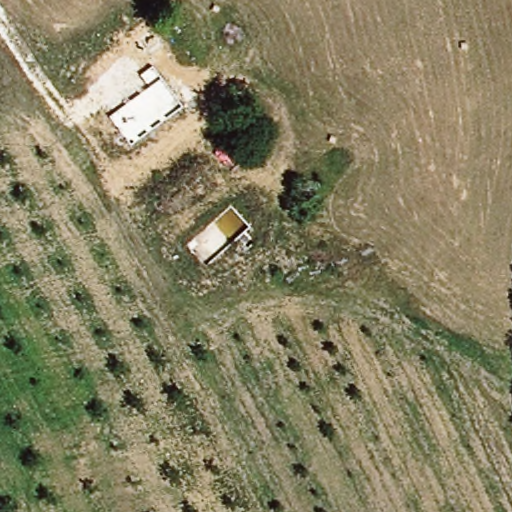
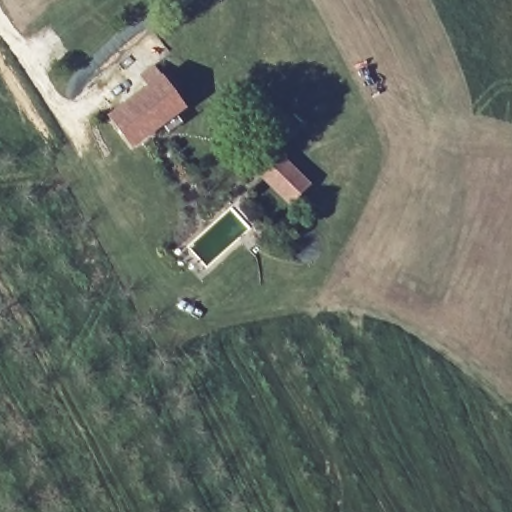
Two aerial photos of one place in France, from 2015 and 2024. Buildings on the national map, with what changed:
new [(187,108),(130,150),(106,120),(148,85),(140,76),(155,65),(187,108)]
new [(313,185),(290,209),(262,180),(285,156),(313,185)]

